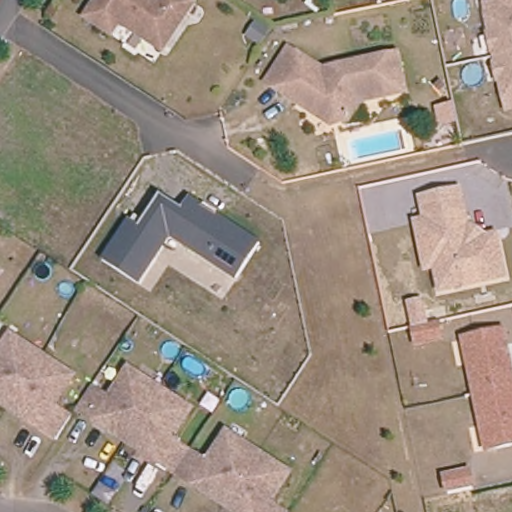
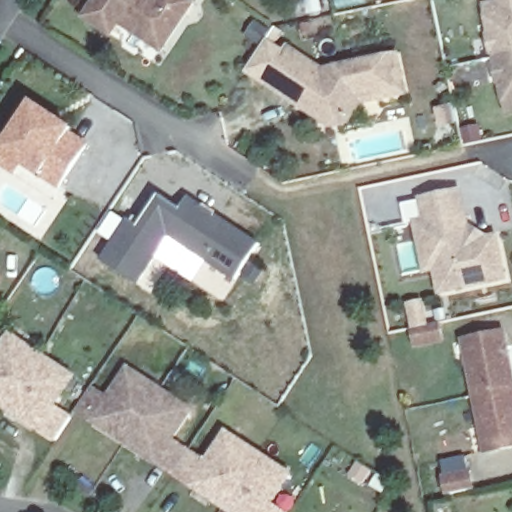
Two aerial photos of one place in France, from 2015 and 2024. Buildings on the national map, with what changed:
unchanged [(141,39),(118,23),(110,35),(84,18),(96,0),(188,0),(193,3),(184,17),(161,51),(141,39)]
unchanged [(494,59),(483,6),(512,0),(512,109),(505,110),(494,59)]
unchanged [(274,25),(264,40),(251,32),(261,17),(274,25)]
unchanged [(270,79),(292,45),(326,66),(400,50),(408,88),(363,97),(351,116),(335,120),(310,105),(301,99),(270,79)]
new [(42,179),(25,167),(17,177),(0,167),(0,154),(1,151),(35,102),(76,129),(72,134),(91,144),(61,189),(42,179)]
unchanged [(419,224),(429,221),(425,200),(463,192),(471,231),(476,230),(484,235),(485,240),(499,237),(508,279),(444,292),(439,268),(429,270),(419,224)]
unchanged [(106,261),(133,220),(136,221),(139,217),(145,221),(163,194),(185,209),(192,198),(263,245),(240,280),(173,236),(168,243),(141,285),(106,261)]
unchanged [(408,305),(420,303),(425,326),(436,323),(440,340),(415,345),(412,328),(413,328),(408,305)]
unchanged [(469,432),(488,427),(474,365),(459,369),(455,346),(504,334),(512,374),(512,448),(475,460),(469,432)]
unchanged [(72,381),(52,411),(70,423),(55,445),(6,413),(0,410),(0,354),(9,340),(72,381)]
unchanged [(107,403),(127,374),(190,415),(171,445),(188,456),(174,479),(75,415),(81,405),(90,392),(107,403)]
unchanged [(225,437),(289,479),(269,509),(274,512),(225,512),(174,479),(188,456),(206,467),(225,437)]
unchanged [(446,480),(471,475),(474,491),(450,496),(446,480)]

